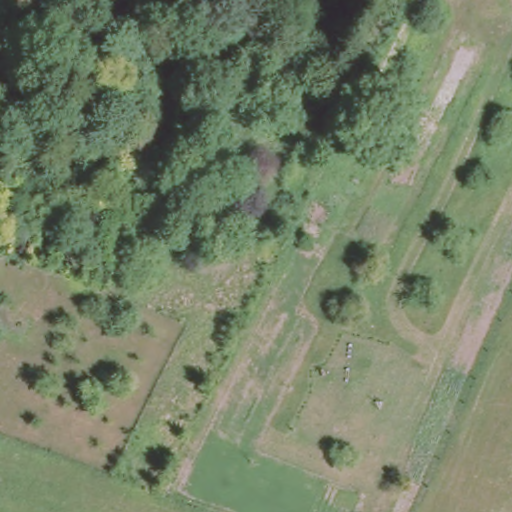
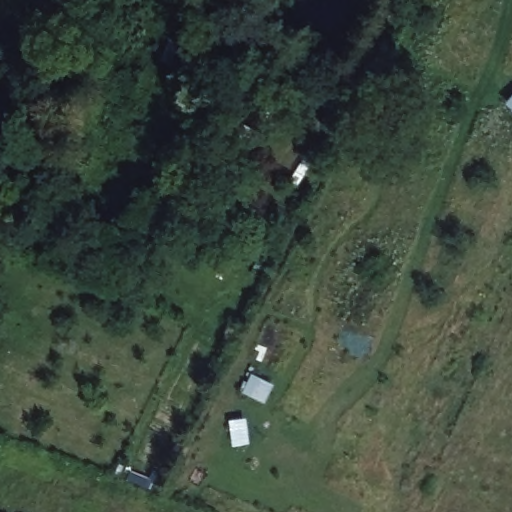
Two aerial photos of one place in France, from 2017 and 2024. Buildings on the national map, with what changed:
unchanged [(166,37),(179,42),(184,37),(199,42),(187,70),(160,58),(166,37)]
unchanged [(299,240),(319,202),(336,210),(318,249),(299,240)]

